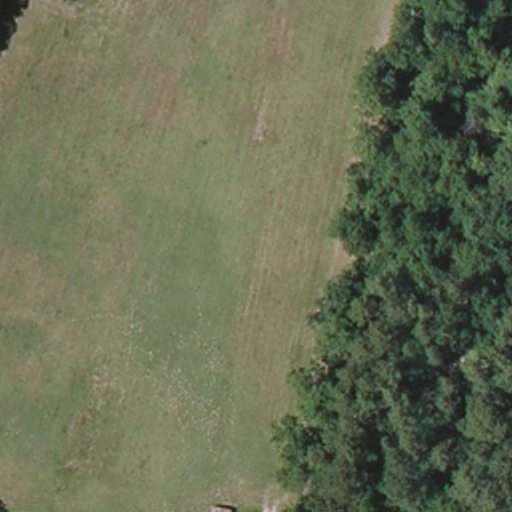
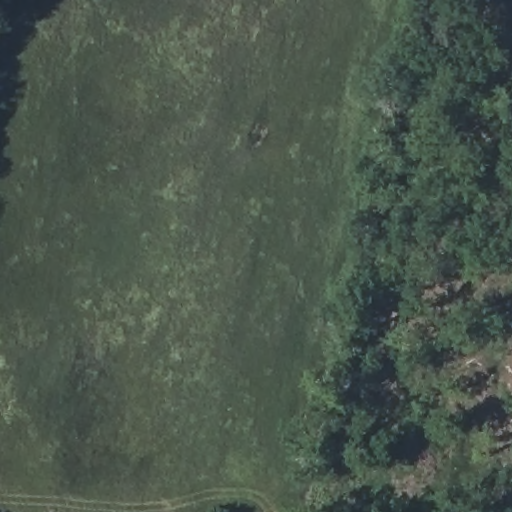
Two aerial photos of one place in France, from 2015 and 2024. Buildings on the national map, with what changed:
unchanged [(207,502),(236,506),(235,512),(205,512),(207,502)]

